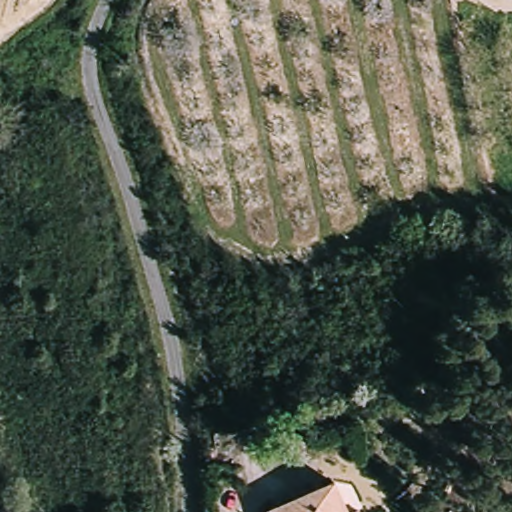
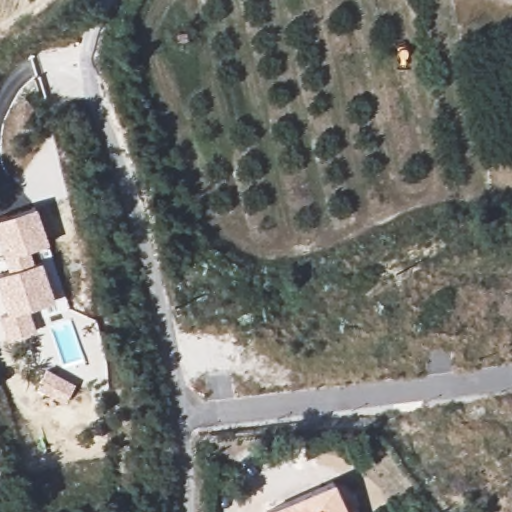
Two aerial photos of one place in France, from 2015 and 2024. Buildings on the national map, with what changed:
new [(35,263),(42,260),(55,298),(30,310),(36,330),(7,341),(0,322),(0,317),(8,314),(0,294),(0,272),(10,269),(6,257),(0,242),(0,217),(36,205),(49,242),(30,249),(35,263)]
unchanged [(352,512),(272,512),(281,508),(339,482),(352,512)]

